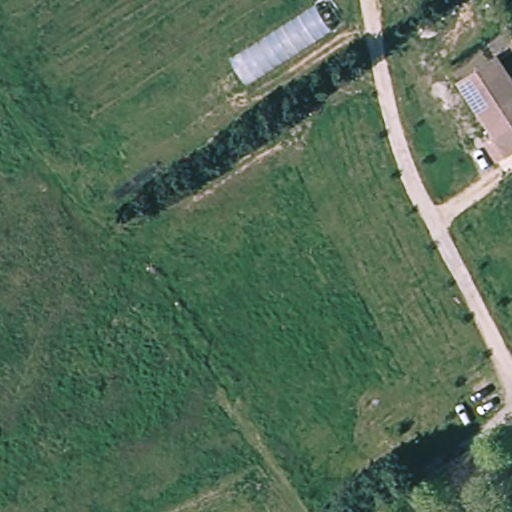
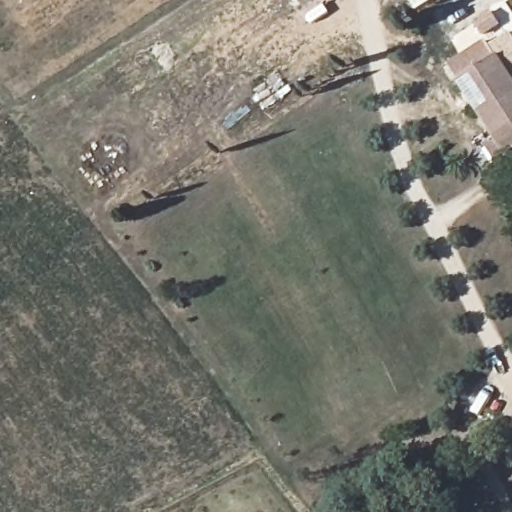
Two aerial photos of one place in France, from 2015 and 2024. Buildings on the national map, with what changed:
demolished [(345,24),(246,87),(229,62),(326,0),(328,0),(345,24)]
unchanged [(512,157),(458,78),(495,54),(512,80),(512,157)]

